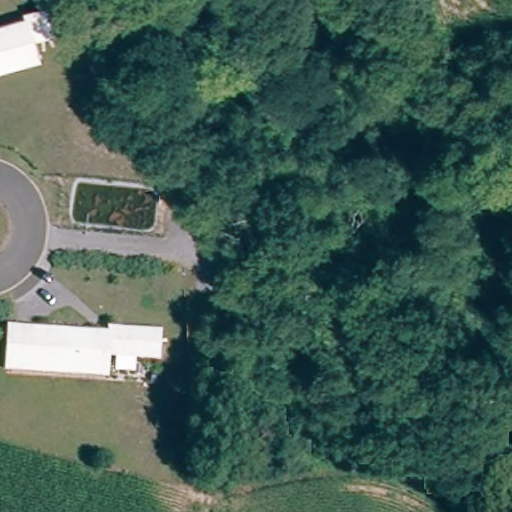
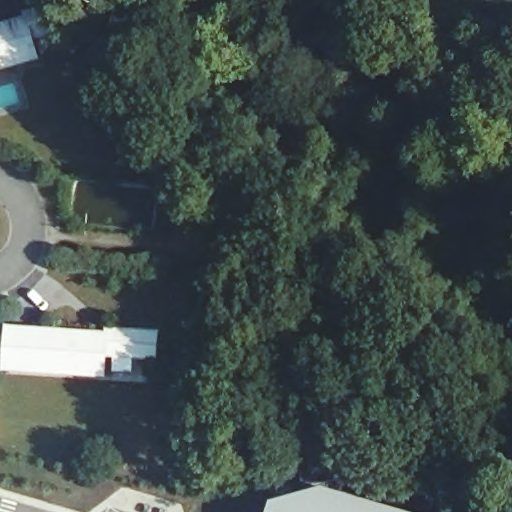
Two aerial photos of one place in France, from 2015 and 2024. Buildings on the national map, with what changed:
unchanged [(60,30),(35,37),(41,56),(0,68),(0,26),(30,18),(28,12),(52,6),(60,30)]
unchanged [(10,326),(111,337),(111,332),(161,337),(159,362),(109,357),(107,377),(6,366),(10,326)]
new [(323,490),(330,490),(401,512),(272,512),(275,504),(323,490)]

